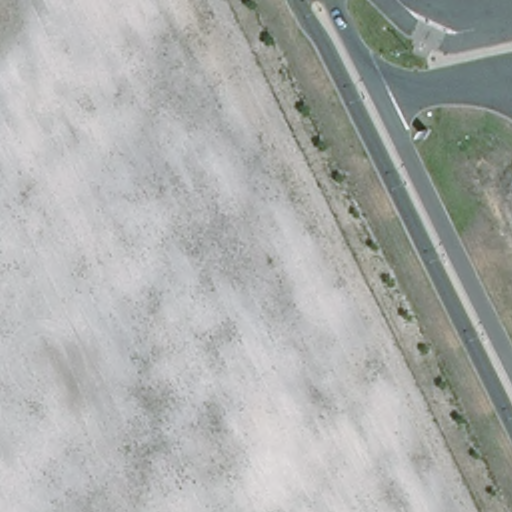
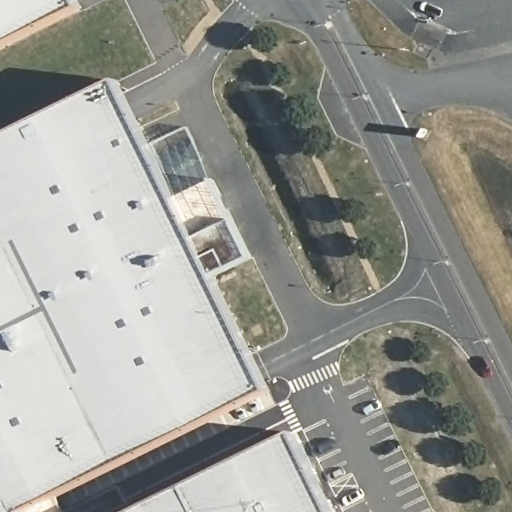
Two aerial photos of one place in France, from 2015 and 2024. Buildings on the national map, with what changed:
new [(0,51),(0,0),(78,0),(83,9),(0,51)]
new [(0,140),(119,82),(176,197),(212,179),(251,258),(215,275),(272,392),(59,497),(67,512),(0,512),(0,140)]
new [(297,433),(336,512),(137,512),(297,433)]

